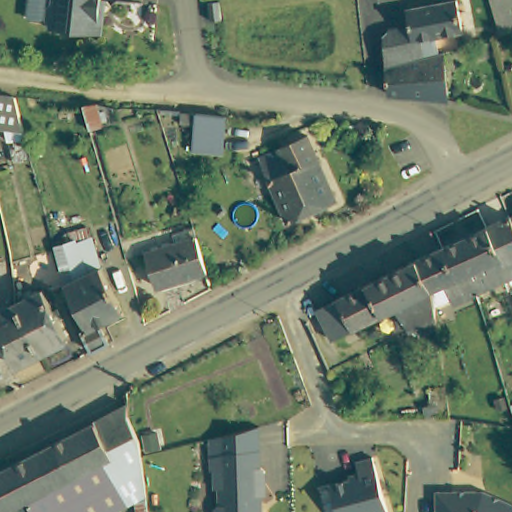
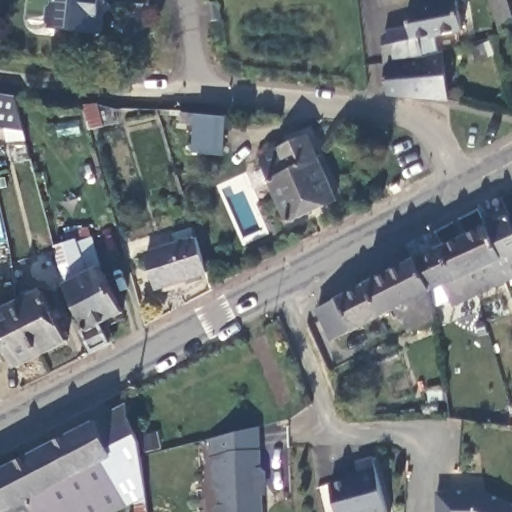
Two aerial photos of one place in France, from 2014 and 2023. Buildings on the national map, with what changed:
unchanged [(109,12),(106,37),(52,32),(53,24),(39,22),(41,0),(103,0),(102,12),(109,12)]
unchanged [(387,30),(390,29),(392,27),(412,23),(410,17),(411,17),(409,6),(441,0),(459,0),(464,25),(437,31),(441,49),(387,63),(386,34),(387,30)]
unchanged [(479,0),(512,0),(512,2),(507,4),(512,23),(512,31),(492,39),(479,0)]
unchanged [(227,20),(216,22),(214,6),(225,5),(227,20)]
unchanged [(387,63),(441,49),(445,48),(447,96),(390,89),(387,63)]
unchanged [(5,125),(0,124),(0,94),(12,96),(24,138),(8,136),(5,125)]
unchanged [(188,116),(219,118),(217,157),(186,155),(188,116)]
unchanged [(262,159),(311,138),(340,201),(292,223),(262,159)]
unchanged [(510,278),(508,279),(498,258),(503,255),(489,226),(512,216),(512,277),(510,278)]
unchanged [(64,236),(103,225),(105,235),(91,239),(101,268),(97,269),(121,312),(99,324),(109,342),(89,353),(88,351),(79,333),(86,328),(78,314),(64,287),(62,288),(59,276),(52,246),(54,245),(66,242),(64,236)]
unchanged [(147,250),(177,242),(174,232),(187,228),(195,225),(198,236),(208,272),(200,274),(157,286),(147,250)]
unchanged [(503,255),(498,258),(508,279),(481,292),(471,272),(459,277),(445,247),(489,226),(503,255)]
unchanged [(457,303),(447,283),(435,289),(421,259),(445,247),(459,277),(471,272),(481,292),(457,303)]
unchanged [(421,259),(435,289),(437,316),(412,328),(398,307),(335,338),(320,307),(421,259)]
unchanged [(17,303),(42,290),(68,337),(44,351),(17,303)]
unchanged [(44,351),(20,365),(0,330),(0,313),(17,303),(44,351)]
unchanged [(132,502),(112,512),(35,512),(28,499),(10,465),(124,405),(123,414),(136,441),(137,454),(143,496),(145,512),(133,512),(132,502)]
unchanged [(262,458),(262,475),(267,479),(267,490),(263,495),(264,512),(222,512),(221,497),(217,497),(216,478),(214,479),(212,465),(212,447),(238,441),(261,435),(262,458)]
unchanged [(357,473),(353,458),(370,454),(386,512),(336,512),(327,482),(357,473)]
unchanged [(3,512),(0,512),(0,470),(10,465),(28,499),(3,512)]
unchanged [(429,493),(467,492),(474,495),(476,492),(512,508),(512,512),(429,512),(429,493)]
unchanged [(28,499),(35,512),(3,512),(28,499)]

